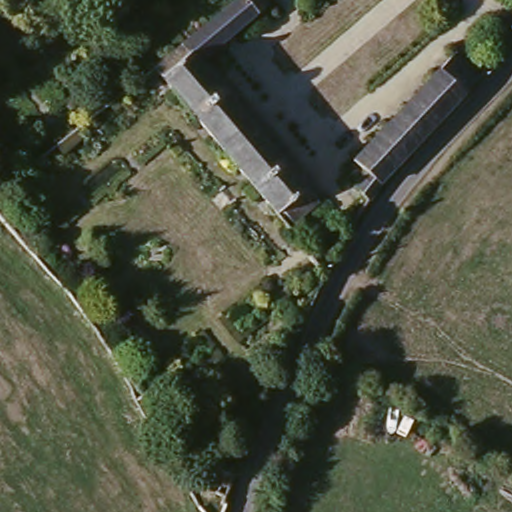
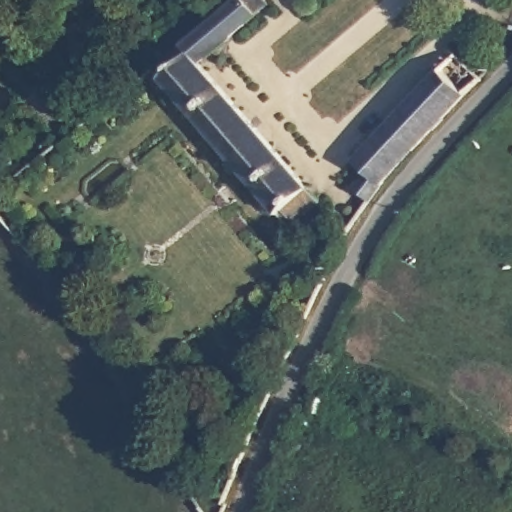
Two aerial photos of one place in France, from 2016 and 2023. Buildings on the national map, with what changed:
unchanged [(202,61),(315,192),(293,215),(290,210),(282,216),(148,66),(232,0),(272,0),(273,2),(202,61)]
unchanged [(376,197),(363,212),(362,213),(351,202),(363,183),(354,172),(457,71),(476,90),(376,197)]

